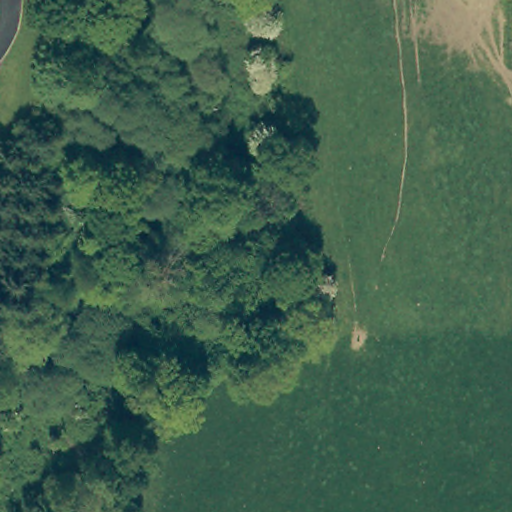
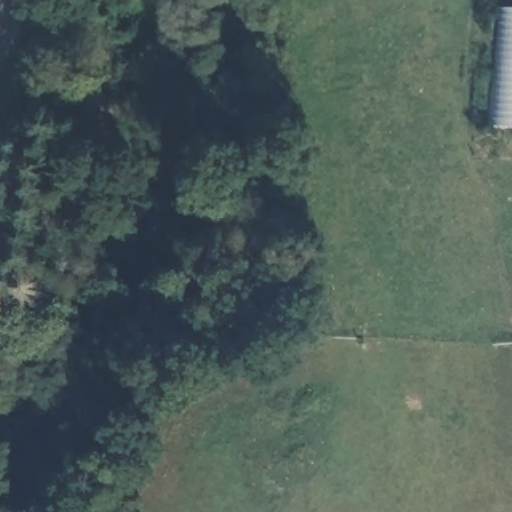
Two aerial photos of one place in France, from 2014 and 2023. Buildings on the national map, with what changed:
new [(500,7),(512,8),(512,131),(492,129),(500,7)]

